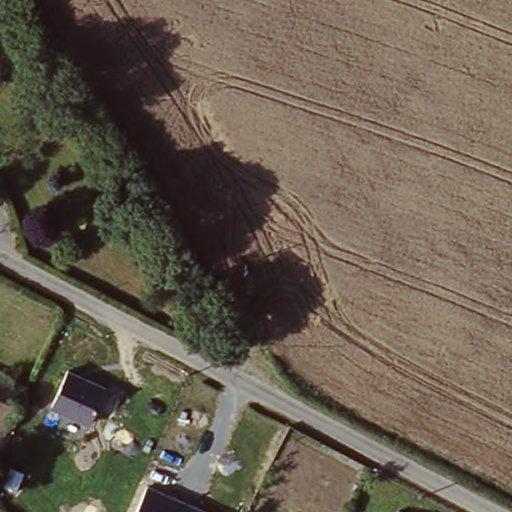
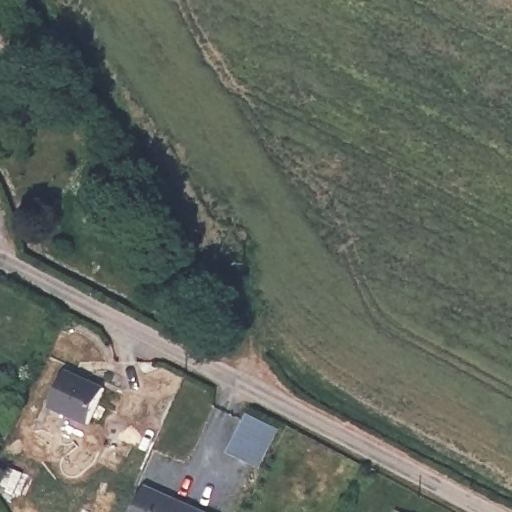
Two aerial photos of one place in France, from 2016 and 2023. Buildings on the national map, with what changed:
unchanged [(90,423),(53,407),(68,368),(106,386),(90,423)]
unchanged [(8,440),(0,435),(0,375),(29,390),(8,440)]
new [(248,414),(280,430),(262,468),(229,452),(248,414)]
unchanged [(147,484),(208,512),(135,512),(147,484)]

